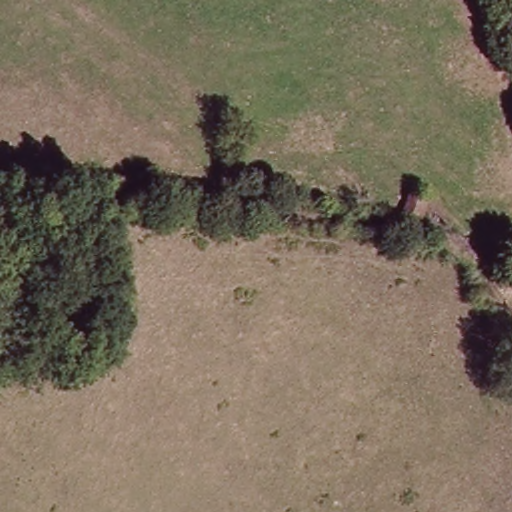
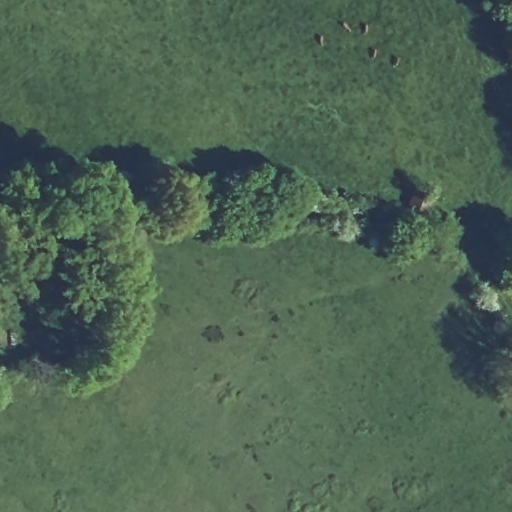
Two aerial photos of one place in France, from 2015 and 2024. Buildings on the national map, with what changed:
unchanged [(432,196),(424,216),(408,210),(414,192),(432,196)]

